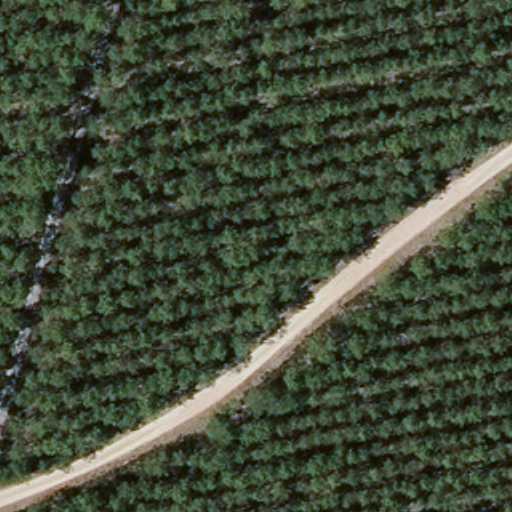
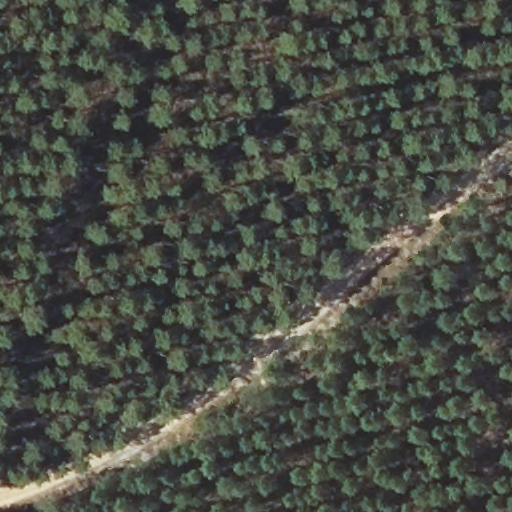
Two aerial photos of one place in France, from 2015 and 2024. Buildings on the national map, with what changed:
[]

